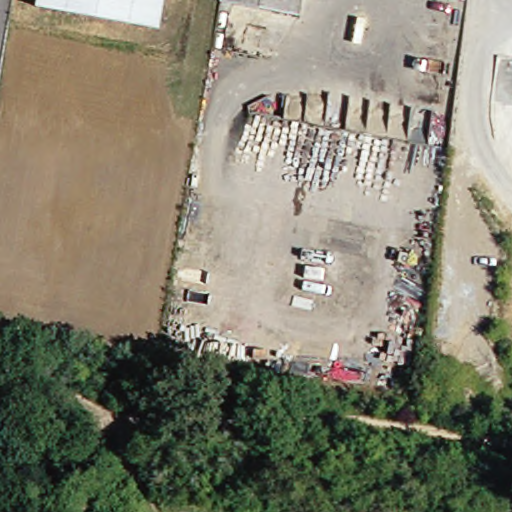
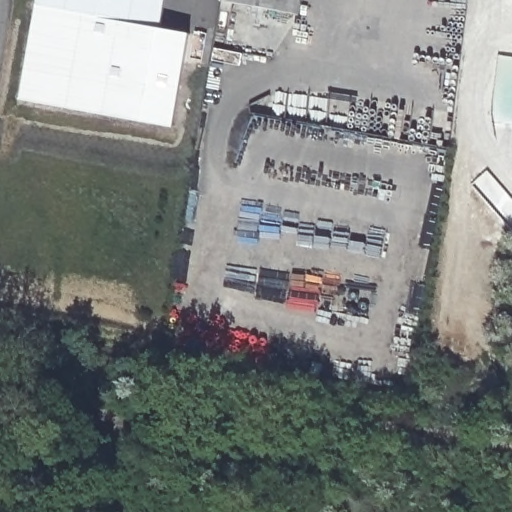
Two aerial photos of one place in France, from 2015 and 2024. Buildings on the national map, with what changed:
new [(189,34),(171,127),(20,100),(38,0),(165,0),(160,28),(189,34)]
demolished [(32,6),(33,0),(160,0),(155,28),(32,6)]
unchanged [(226,2),(225,11),(215,9),(216,0),(297,0),(295,15),(226,2)]
unchanged [(358,17),(365,19),(360,44),(353,42),(358,17)]

